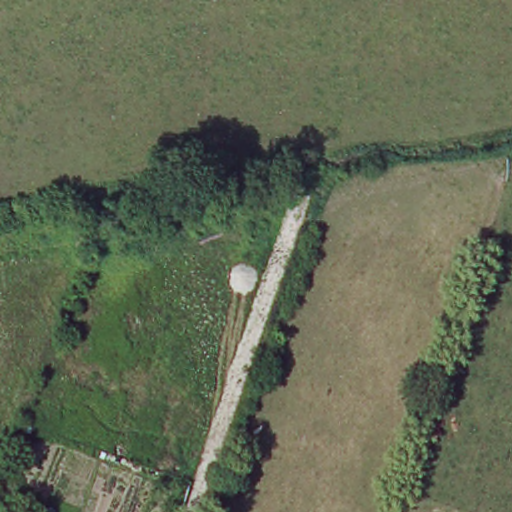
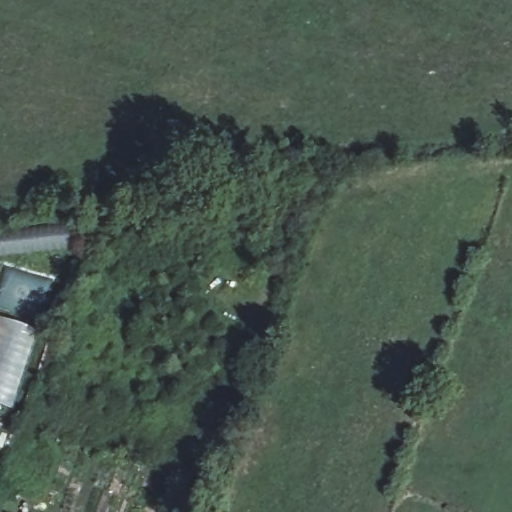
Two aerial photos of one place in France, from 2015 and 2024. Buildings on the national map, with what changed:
new [(41,244),(31,254),(0,257),(0,241),(2,241),(1,233),(71,226),(74,248),(53,250),(52,239),(41,244)]
new [(37,329),(11,408),(0,404),(0,317),(37,329)]

